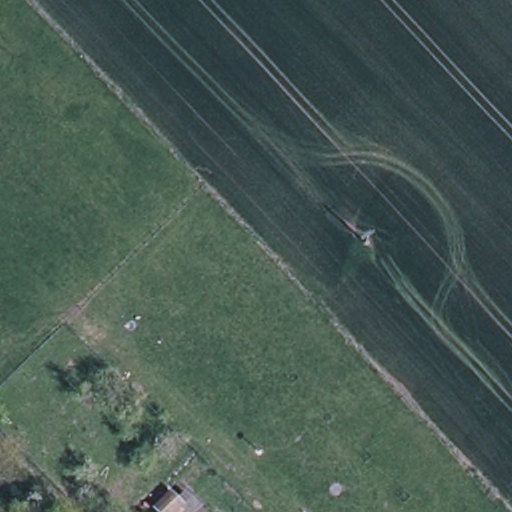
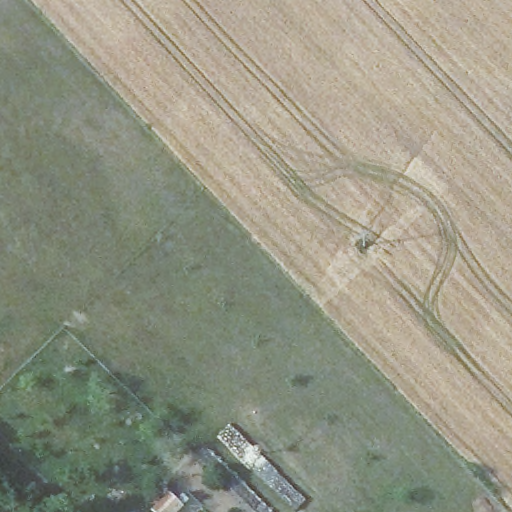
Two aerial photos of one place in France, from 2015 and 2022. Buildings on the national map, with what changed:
unchanged [(172,512),(150,512),(166,496),(177,506),(172,512)]

